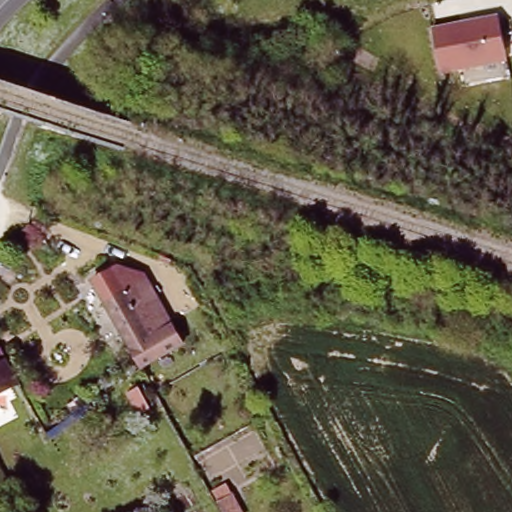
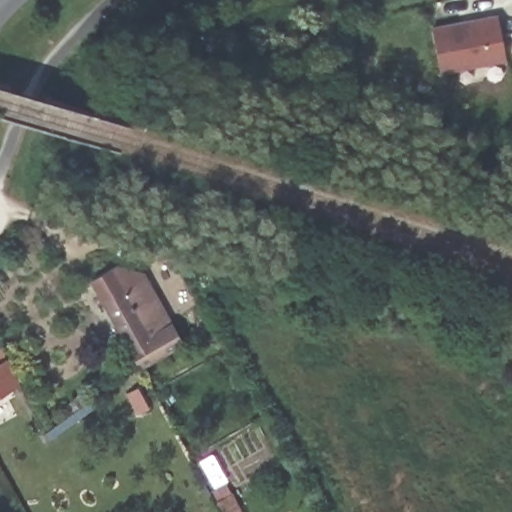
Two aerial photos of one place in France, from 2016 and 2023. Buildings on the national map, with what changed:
unchanged [(432,28),(500,16),(507,64),(439,75),(432,28)]
unchanged [(135,305),(150,296),(177,342),(139,362),(110,312),(130,299),(135,305)]
unchanged [(19,388),(0,397),(0,360),(19,388)]

